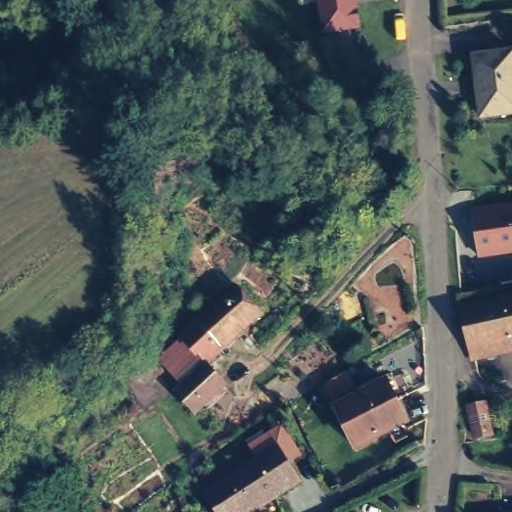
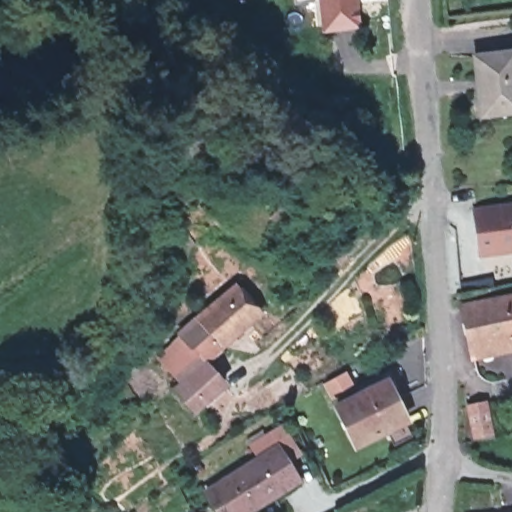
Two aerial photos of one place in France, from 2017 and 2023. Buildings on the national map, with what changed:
unchanged [(360,27),(324,32),(319,0),(357,0),(360,27)]
unchanged [(480,119),(470,61),(510,55),(512,62),(512,114),(480,119)]
unchanged [(482,257),(470,199),(496,194),(500,199),(506,197),(512,207),(512,250),(482,257)]
unchanged [(182,387),(190,378),(165,347),(189,327),(249,278),(275,312),(212,363),(239,398),(209,423),(182,387)]
unchanged [(512,298),(512,344),(473,355),(462,312),(512,298)]
unchanged [(355,443),(339,406),(389,382),(405,420),(355,443)]
unchanged [(494,432),(480,436),(472,405),(487,401),(494,432)]
unchanged [(279,440),(254,455),(245,439),(285,418),(304,453),(292,460),(279,440)]
unchanged [(279,440),(292,460),(307,486),(255,512),(218,512),(203,485),(254,455),(279,440)]

